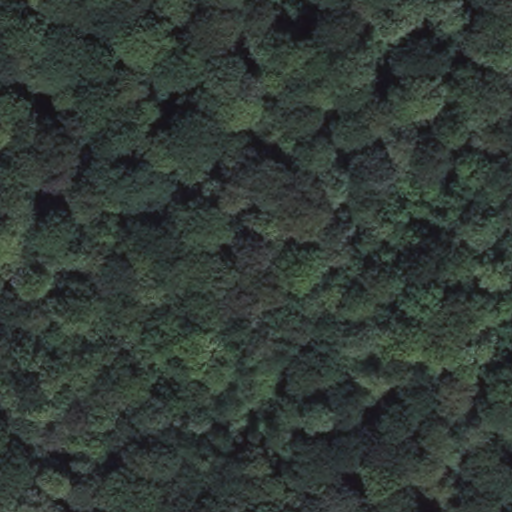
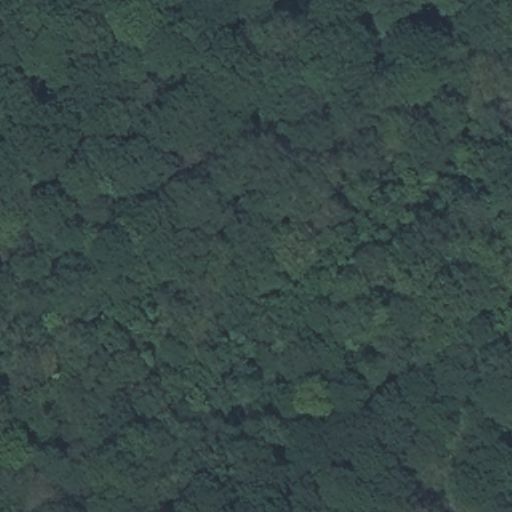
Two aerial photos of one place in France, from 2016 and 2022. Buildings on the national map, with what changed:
[]

